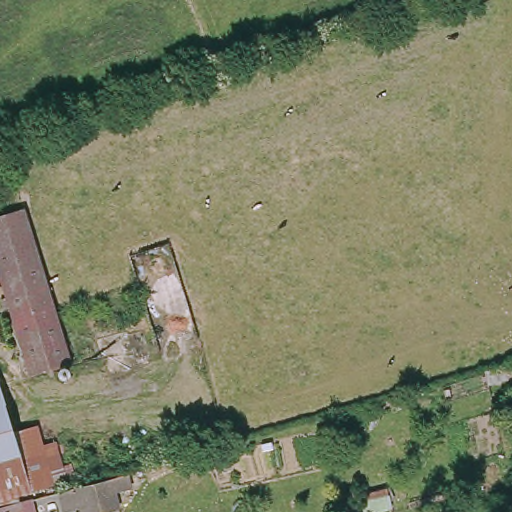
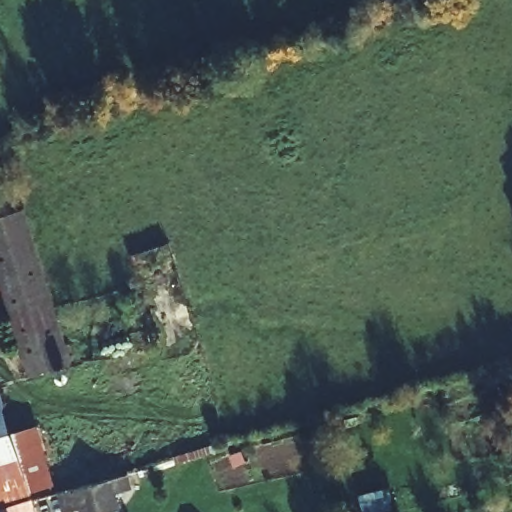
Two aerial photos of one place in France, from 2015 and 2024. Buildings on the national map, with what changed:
unchanged [(0,279),(0,216),(24,208),(62,335),(71,363),(30,376),(0,279)]
unchanged [(30,491),(0,500),(0,390),(12,431),(30,491)]
unchanged [(65,481),(30,491),(12,431),(35,425),(39,441),(54,437),(65,481)]
unchanged [(102,478),(110,476),(117,504),(90,512),(82,512),(75,486),(102,478)]
unchanged [(373,512),(365,512),(360,495),(386,489),(390,508),(373,512)]
unchanged [(21,503),(23,512),(0,512),(0,508),(21,503)]

